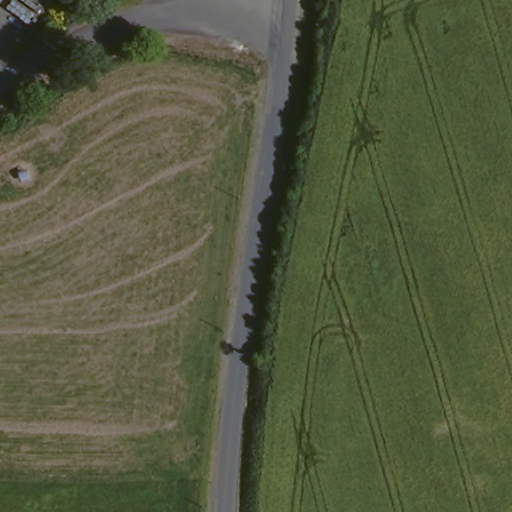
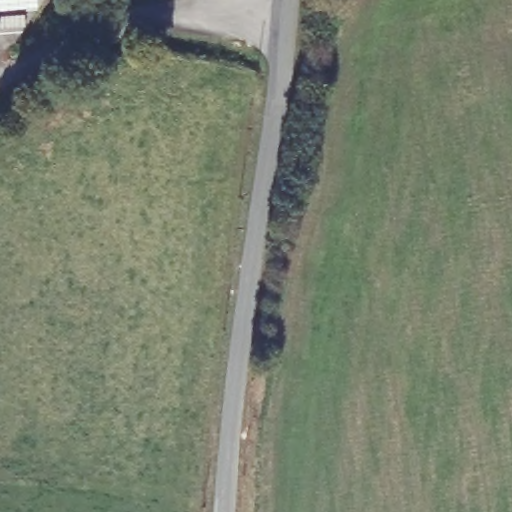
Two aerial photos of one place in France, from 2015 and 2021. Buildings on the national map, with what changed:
[]

